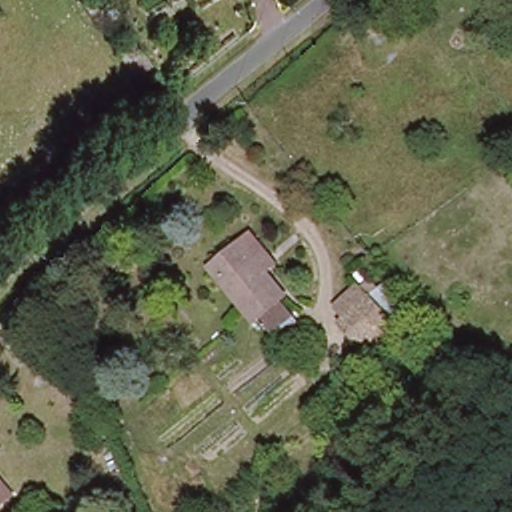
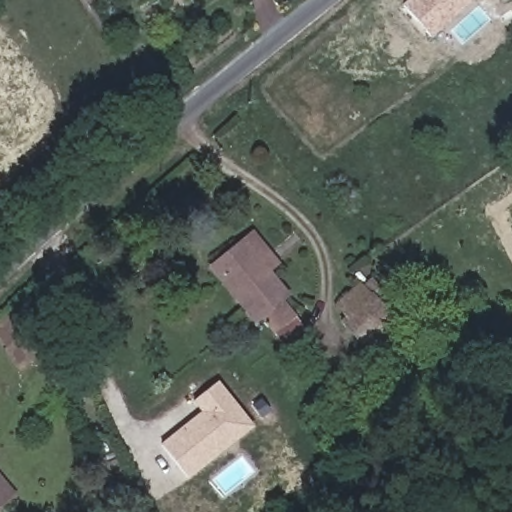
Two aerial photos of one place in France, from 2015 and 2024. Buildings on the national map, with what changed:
new [(432,38),(402,5),(408,0),(474,0),(432,38)]
unchanged [(266,267),(286,291),(279,296),(308,332),(298,340),(293,334),(285,341),(262,312),(255,318),(211,264),(251,231),(275,259),(266,267)]
unchanged [(348,316),(377,292),(404,323),(375,348),(348,316)]
new [(160,444),(200,413),(191,401),(219,381),(254,427),(188,480),(160,444)]
unchanged [(0,508),(0,480),(14,496),(0,508)]

